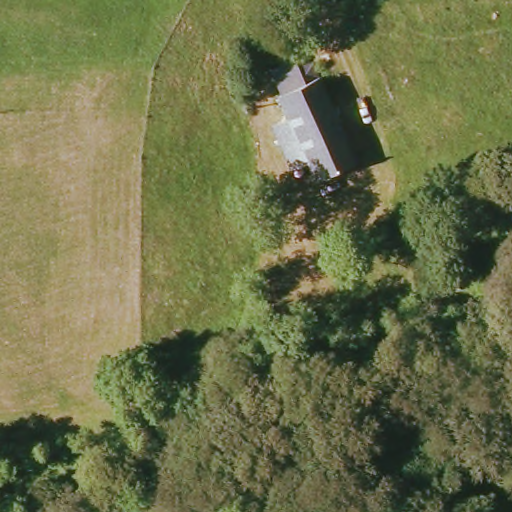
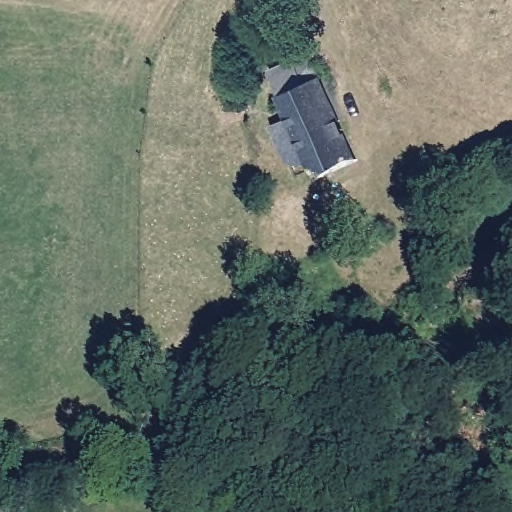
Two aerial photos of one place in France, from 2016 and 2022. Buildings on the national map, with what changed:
unchanged [(280,120),(285,119),(282,112),(275,97),(274,95),(275,95),(279,92),(274,82),(271,75),(273,74),(277,72),(297,62),(302,63),(309,78),(316,76),(356,161),(312,180),(304,160),(288,167),(275,142),(272,135),(267,126),(273,124),(280,120)]

